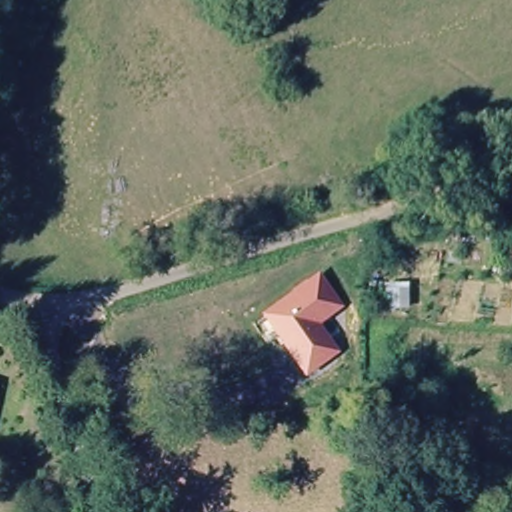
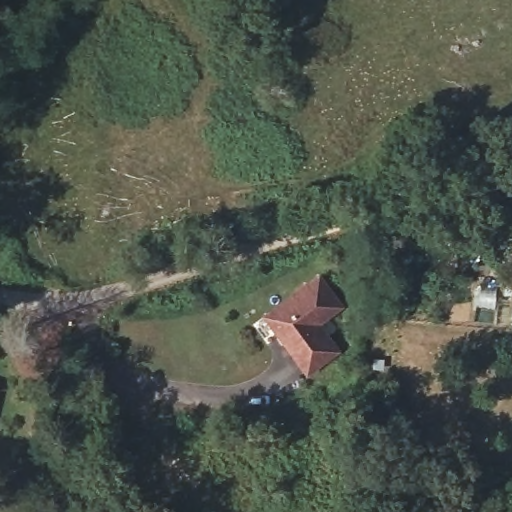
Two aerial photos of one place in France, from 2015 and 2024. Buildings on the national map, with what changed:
unchanged [(297,290),(296,289),(308,280),(309,282),(321,273),(343,303),(319,321),(339,349),(308,370),(286,339),(288,337),(284,331),(282,333),(266,312),(297,290)]

